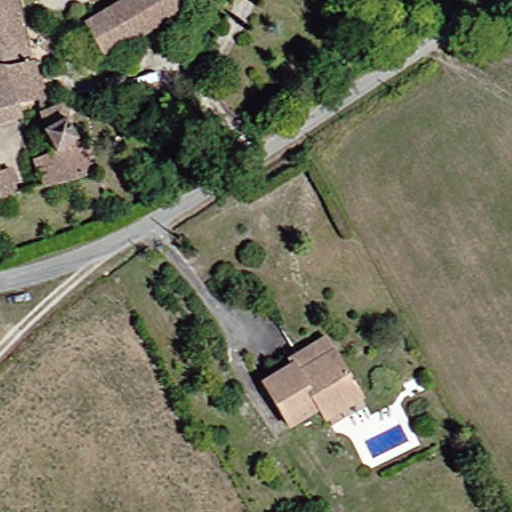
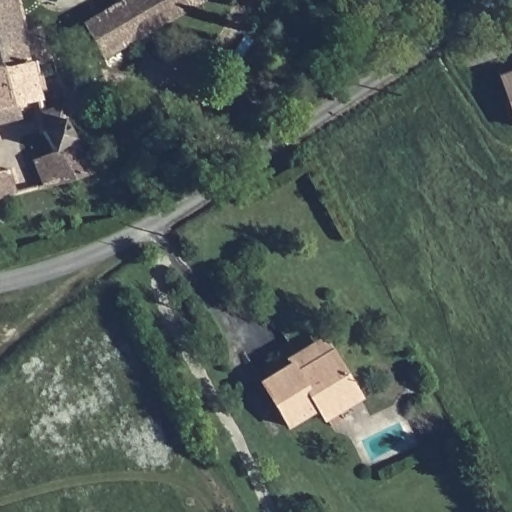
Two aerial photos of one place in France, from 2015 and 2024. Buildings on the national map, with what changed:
unchanged [(0,0),(10,0),(23,66),(31,67),(34,109),(13,113),(15,125),(0,129),(0,0)]
unchanged [(94,58),(79,24),(130,0),(174,0),(183,20),(94,58)]
unchanged [(174,0),(207,0),(210,7),(183,20),(174,0)]
new [(512,71),(512,114),(499,76),(512,71)]
unchanged [(19,164),(46,153),(31,118),(61,109),(89,178),(30,195),(19,164)]
unchanged [(13,199),(0,202),(0,174),(5,173),(13,199)]
unchanged [(321,425),(312,415),(285,432),(260,390),(291,369),(286,361),(317,341),(328,358),(347,392),(354,401),(321,425)]

